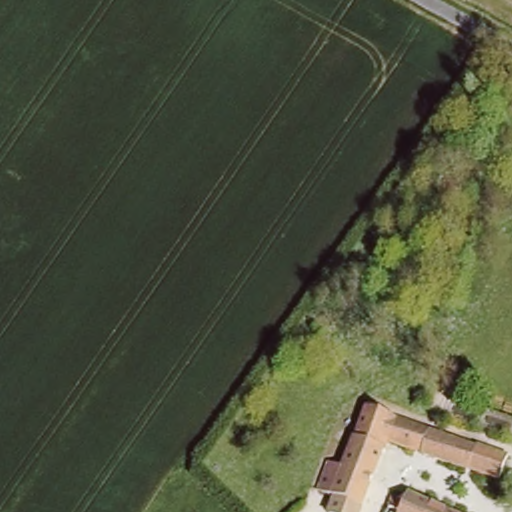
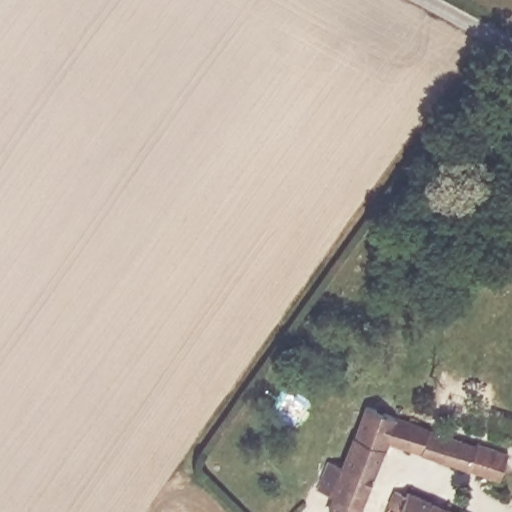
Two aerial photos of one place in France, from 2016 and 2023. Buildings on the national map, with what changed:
unchanged [(490,456),(485,475),(375,438),(372,444),(377,445),(354,512),(323,512),(329,495),(312,489),(323,461),(334,466),(360,409),(364,411),(464,447),(490,456)]
unchanged [(410,490),(458,512),(400,512),(402,508),(388,502),(395,487),(409,492),(410,490)]

